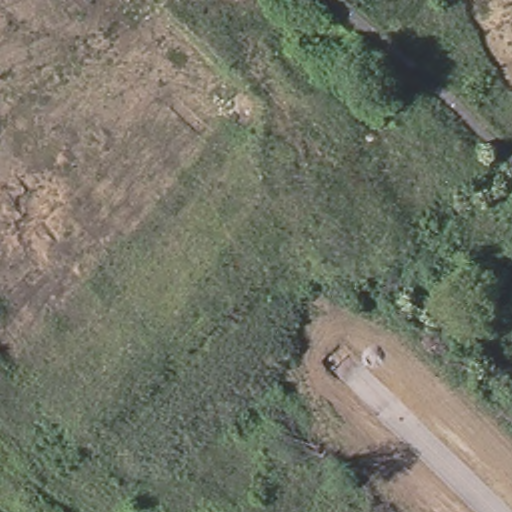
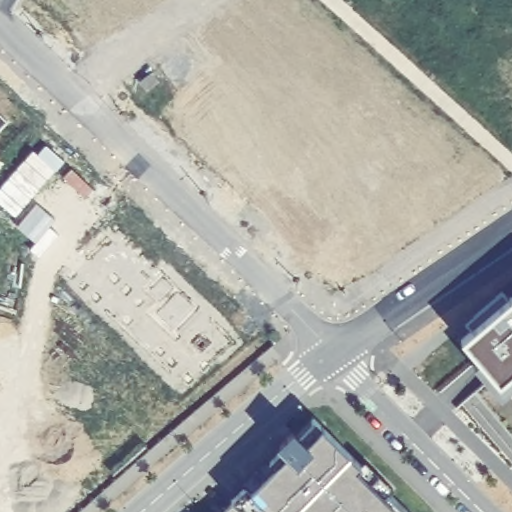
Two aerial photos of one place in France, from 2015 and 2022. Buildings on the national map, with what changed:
new [(27,138),(0,165),(0,112),(27,138)]
new [(512,295),(512,386),(500,397),(486,381),(472,364),(477,359),(460,339),(474,328),(464,323),(502,291),(511,296),(512,295)]
new [(486,381),(500,397),(512,386),(512,436),(474,391),(486,381)]
new [(323,426),(360,464),(363,460),(393,489),(389,492),(409,512),(296,512),(293,509),(289,512),(221,512),(231,499),(244,486),(241,482),(264,459),(269,462),(279,450),(276,446),(292,429),(297,433),(314,419),(323,426)]

